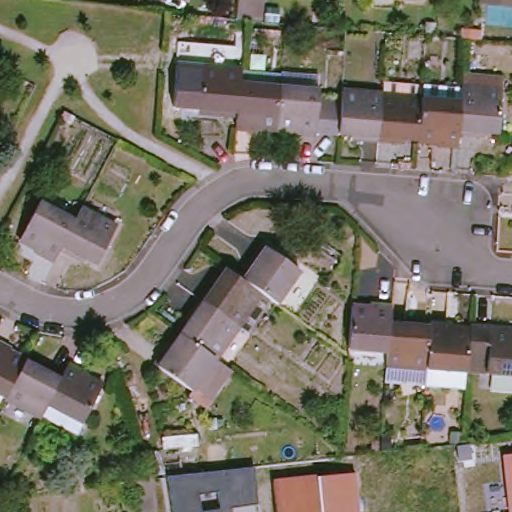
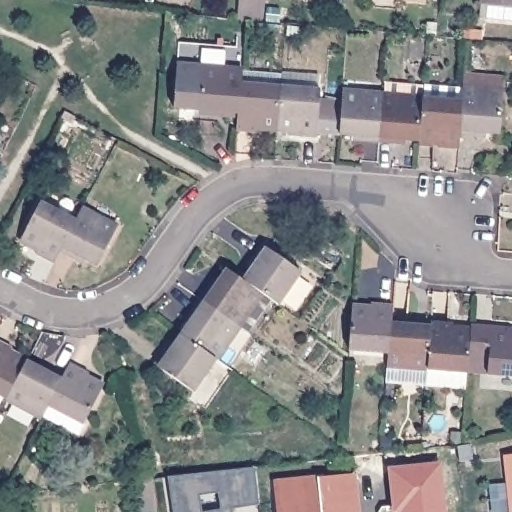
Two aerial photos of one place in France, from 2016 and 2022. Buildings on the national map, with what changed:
unchanged [(250,24),(241,23),(244,0),(266,0),(263,26),(250,24)]
unchanged [(490,13),(491,0),(512,0),(512,15),(503,14),(503,23),(485,22),(485,14),(490,13)]
unchanged [(243,88),(240,119),(220,118),(221,113),(202,112),(206,70),(245,73),(243,88)]
unchanged [(240,119),(243,88),(283,92),(280,132),(261,130),(260,135),(240,134),(240,119)]
unchanged [(283,92),(323,95),(322,107),(347,109),(345,136),(345,137),(320,135),(320,139),(300,138),(299,133),(280,132),(283,92)]
unchanged [(467,105),(468,93),(509,97),(505,137),(486,136),(485,140),(465,139),(467,105)]
unchanged [(347,109),(348,94),(387,98),(382,145),(362,144),(362,137),(345,136),(347,109)]
unchanged [(387,98),(427,101),(425,142),(404,140),(403,146),(382,145),(387,98)]
unchanged [(427,101),(467,105),(465,139),(463,151),(443,151),(444,144),(425,142),(427,101)]
unchanged [(65,249),(60,260),(42,252),(45,247),(30,238),(47,201),(82,218),(65,249)]
unchanged [(82,218),(87,208),(121,225),(103,260),(87,254),(82,257),(65,249),(82,218)]
unchanged [(266,294),(250,283),(261,267),(257,264),(268,246),(307,272),(285,307),(266,294)]
unchanged [(207,302),(220,285),(223,287),(234,271),(250,283),(266,294),(243,328),(207,302)]
unchanged [(188,336),(200,319),(197,316),(207,302),(243,328),(221,359),(188,336)]
unchanged [(356,310),(375,312),(376,305),(395,306),(396,319),(393,353),(353,350),(356,310)]
unchanged [(393,353),(396,319),(416,320),(416,327),(435,328),(432,369),(391,366),(393,353)]
unchanged [(435,328),(436,323),(455,324),(455,330),(475,331),(473,359),(472,372),(432,369),(435,328)]
unchanged [(475,331),(476,325),(512,328),(512,375),(493,374),(493,361),(473,359),(475,331)]
unchanged [(221,359),(199,391),(163,366),(172,350),(177,351),(188,336),(221,359)]
unchanged [(13,364),(31,373),(12,409),(0,403),(0,350),(15,358),(13,364)]
unchanged [(31,373),(45,380),(50,377),(67,386),(52,416),(46,427),(12,409),(31,373)]
unchanged [(67,386),(73,375),(93,385),(91,390),(105,398),(88,433),(52,416),(67,386)]
unchanged [(508,512),(501,456),(512,455),(512,512),(508,512)]
new [(445,512),(402,512),(393,510),(390,468),(440,464),(445,512)]
unchanged [(257,505),(231,509),(232,512),(174,512),(168,478),(254,467),(257,505)]
unchanged [(317,479),(355,474),(359,512),(276,512),(273,481),(317,476),(317,479)]
unchanged [(155,497),(140,499),(138,481),(138,480),(153,479),(155,497)]

